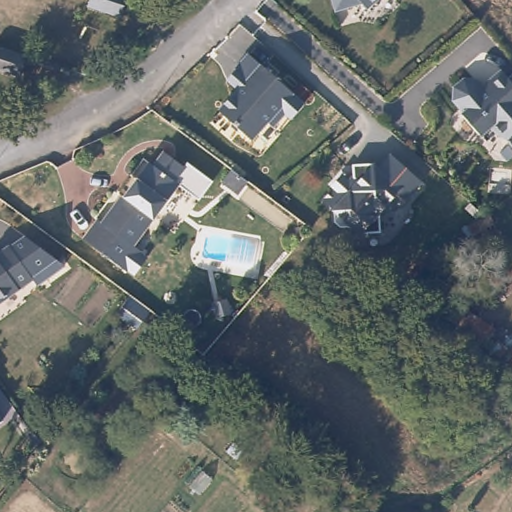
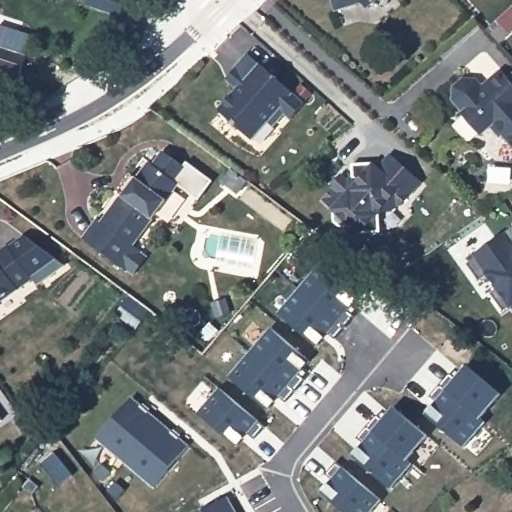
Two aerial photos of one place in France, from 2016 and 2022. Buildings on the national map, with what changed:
unchanged [(123,15),(90,4),(91,0),(127,0),(123,15)]
unchanged [(336,5),(334,0),(351,0),(336,5)]
unchanged [(370,1),(370,0),(371,0),(370,1)]
unchanged [(23,76),(0,68),(0,44),(30,54),(23,76)]
unchanged [(265,120),(249,138),(216,109),(235,88),(232,86),(226,80),(236,69),(233,67),(245,53),(257,64),(257,63),(290,92),(301,102),(288,117),(282,112),(271,125),(265,120)]
unchanged [(511,128),(509,130),(500,120),(489,130),(471,110),(474,107),(463,95),(464,82),(472,75),(484,75),(491,82),(497,77),(510,66),(512,68),(512,129),(511,128)]
unchanged [(140,267),(134,262),(132,265),(89,231),(104,211),(108,215),(127,190),(123,187),(137,169),(143,173),(156,156),(160,159),(171,145),(192,162),(182,176),(186,179),(139,239),(147,245),(146,247),(151,252),(140,267)]
unchanged [(337,176),(347,167),(351,170),(353,172),(358,167),(358,156),(376,156),(378,158),(378,162),(381,162),(393,149),(424,177),(404,199),(402,197),(394,205),(383,205),(384,224),(364,225),(356,217),(344,218),(337,212),(337,199),(328,191),(339,179),(337,176)]
new [(510,310),(506,312),(492,295),(497,291),(485,273),(480,279),(470,265),(477,258),(475,255),(510,232),(512,229),(512,308),(510,310)]
unchanged [(54,264),(26,285),(21,278),(0,294),(0,247),(15,237),(54,264)]
new [(324,258),(364,292),(349,309),(356,316),(334,341),(326,334),(317,345),(278,312),(324,258)]
demolished [(510,341),(499,356),(453,317),(464,304),(510,341)]
new [(312,361),(302,372),(308,378),(286,405),(278,399),(268,410),(230,376),(272,327),(312,361)]
new [(512,356),(512,362),(509,358),(512,356)]
new [(467,448),(425,412),(447,388),(468,363),(503,393),(484,418),(488,422),(467,448)]
new [(260,420),(266,426),(255,438),(249,433),(238,447),(198,413),(221,388),(260,420)]
new [(133,397),(190,446),(156,487),(99,439),(133,397)]
new [(373,431),(394,407),(429,437),(410,459),(415,463),(392,488),(352,453),(373,431)]
unchanged [(0,418),(0,416),(1,417),(0,418)]
new [(345,512),(321,491),(344,466),(385,500),(373,512),(345,512)]
new [(239,512),(203,512),(230,496),(239,512)]
demolished [(432,512),(399,512),(400,501),(434,504),(432,512)]

